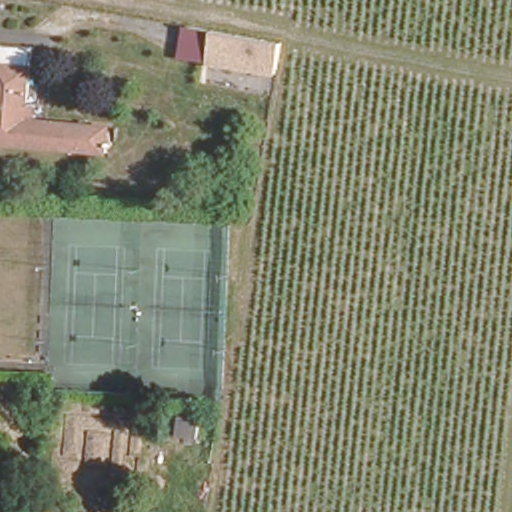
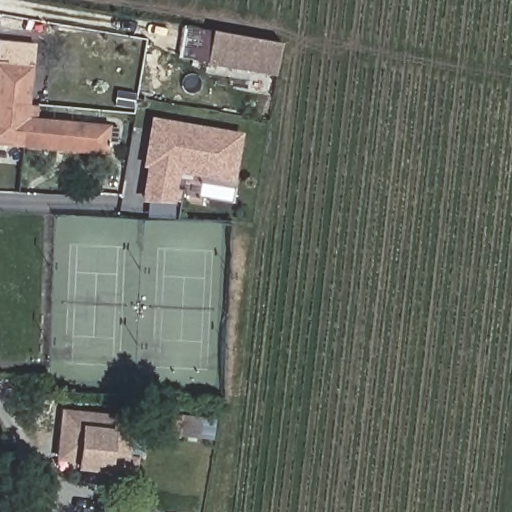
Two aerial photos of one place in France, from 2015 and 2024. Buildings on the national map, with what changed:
new [(280,44),(274,75),(179,57),(184,25),(212,31),(280,44)]
demolished [(208,52),(210,34),(281,44),(278,62),(208,52)]
unchanged [(33,50),(28,106),(40,106),(40,119),(115,124),(114,155),(0,146),(0,47),(33,50)]
new [(242,132),(234,182),(178,174),(174,203),(141,201),(146,167),(141,166),(150,117),(242,132)]
new [(131,415),(128,456),(137,456),(135,483),(105,480),(106,473),(76,470),(77,460),(55,460),(60,409),(131,415)]
unchanged [(178,442),(180,416),(201,418),(200,443),(178,442)]

